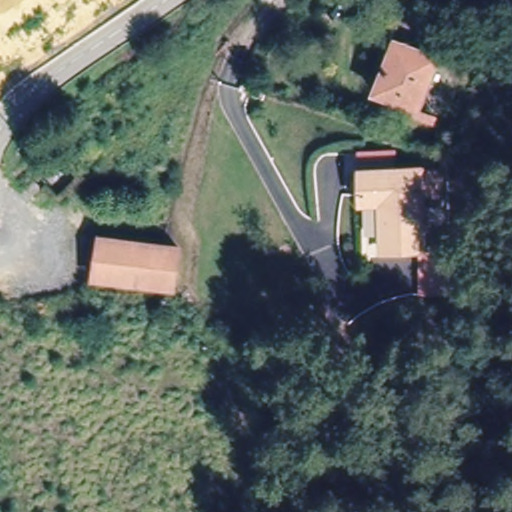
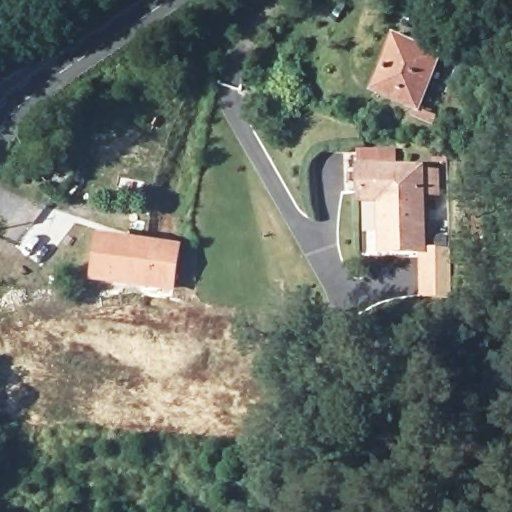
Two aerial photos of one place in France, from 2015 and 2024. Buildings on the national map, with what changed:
unchanged [(435,56),(417,107),(377,91),(395,41),(435,56)]
unchanged [(373,253),(372,205),(355,206),(353,156),(386,155),(387,174),(412,174),(414,252),(373,253)]
unchanged [(175,289),(97,275),(102,239),(180,251),(175,289)]
unchanged [(441,250),(442,295),(415,297),(414,252),(441,250)]

